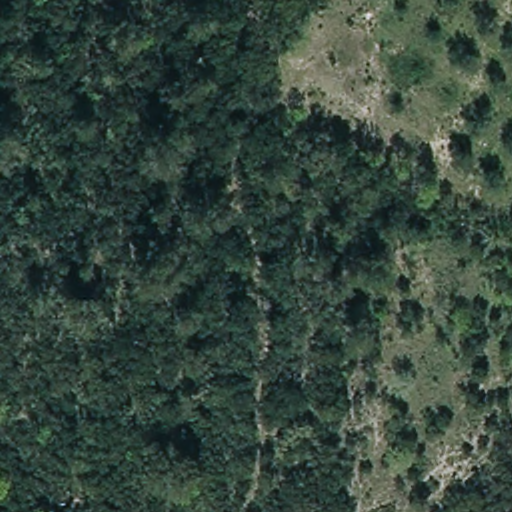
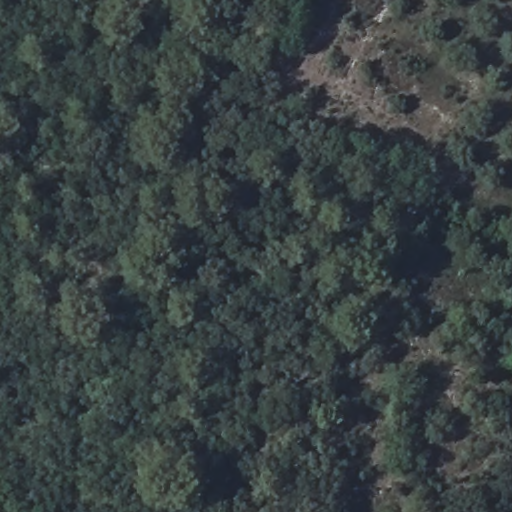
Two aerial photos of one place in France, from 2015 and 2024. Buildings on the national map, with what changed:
[]

